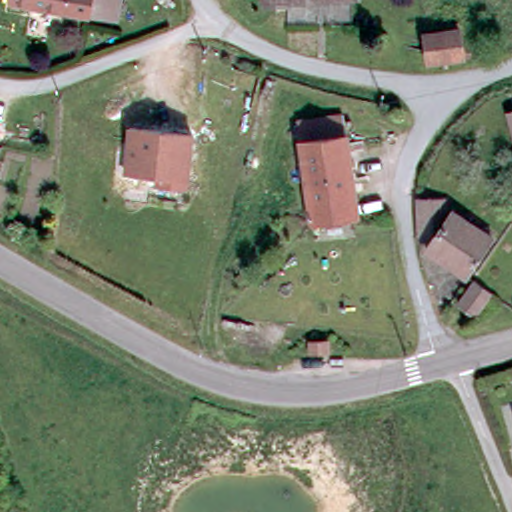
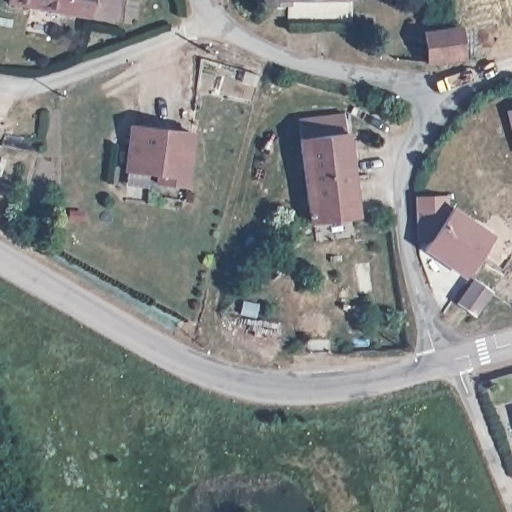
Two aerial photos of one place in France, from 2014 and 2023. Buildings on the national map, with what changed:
unchanged [(115,21),(91,17),(91,22),(10,7),(10,0),(118,0),(115,21)]
unchanged [(262,9),(262,0),(281,0),(282,9),(262,9)]
unchanged [(283,25),(282,9),(281,0),(348,0),(350,22),(283,25)]
unchanged [(460,57),(425,60),(423,32),(456,30),(460,57)]
unchanged [(505,110),(512,108),(512,142),(505,110)]
unchanged [(295,129),(341,124),(355,227),(309,233),(295,129)]
unchanged [(191,136),(182,189),(152,184),(154,175),(122,169),(125,149),(128,135),(130,125),(191,136)]
unchanged [(421,198),(445,197),(447,222),(425,248),(421,252),(421,198)]
unchanged [(455,212),(490,237),(462,276),(425,248),(447,222),(455,212)]
unchanged [(470,313),(455,301),(470,280),(486,292),(470,313)]
unchanged [(505,413),(512,412),(512,437),(505,413)]

